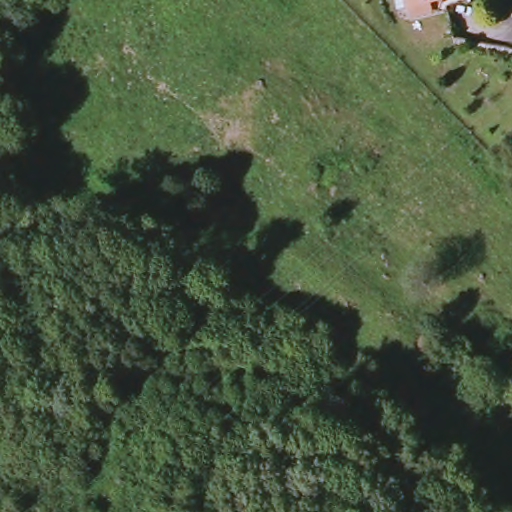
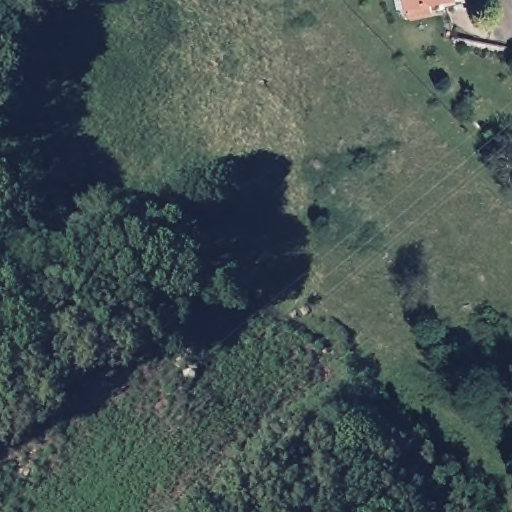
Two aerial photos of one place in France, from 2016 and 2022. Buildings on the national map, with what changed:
unchanged [(464,0),(465,12),(441,13),(440,4),(406,5),(395,6),(394,0),(464,0)]

